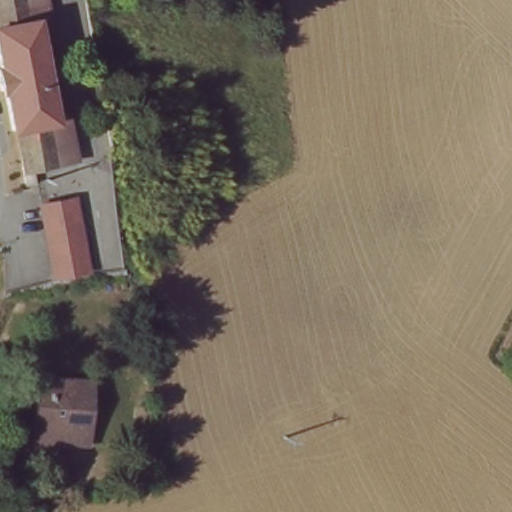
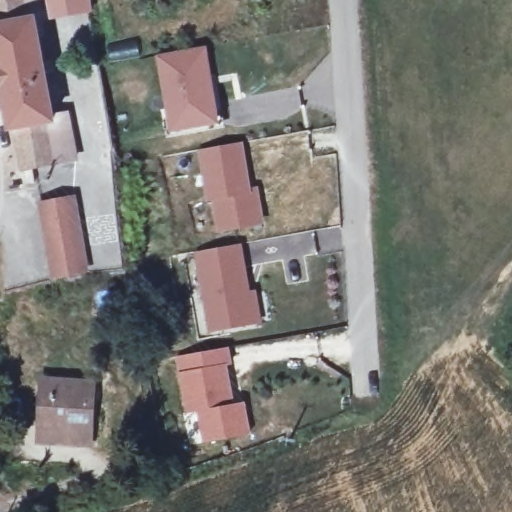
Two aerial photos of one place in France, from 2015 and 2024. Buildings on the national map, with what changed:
unchanged [(75,160),(31,169),(34,183),(24,184),(22,170),(14,131),(9,131),(2,87),(0,87),(0,0),(20,0),(23,16),(29,15),(49,123),(67,120),(75,160)]
unchanged [(29,15),(23,16),(20,0),(41,0),(43,12),(29,15)]
new [(171,133),(158,56),(206,48),(220,124),(171,133)]
new [(257,188),(265,224),(218,233),(213,201),(208,201),(198,151),(243,144),(251,188),(257,188)]
unchanged [(68,194),(70,203),(83,266),(50,273),(38,211),(36,201),(68,194)]
new [(257,292),(262,325),(209,334),(196,254),(241,245),(251,292),(257,292)]
new [(251,434),(203,443),(198,414),(187,415),(178,375),(175,358),(229,349),(231,365),(225,366),(233,406),(245,403),(251,434)]
unchanged [(91,388),(87,438),(68,436),(67,444),(52,443),(56,404),(42,403),(44,385),(91,388)]

